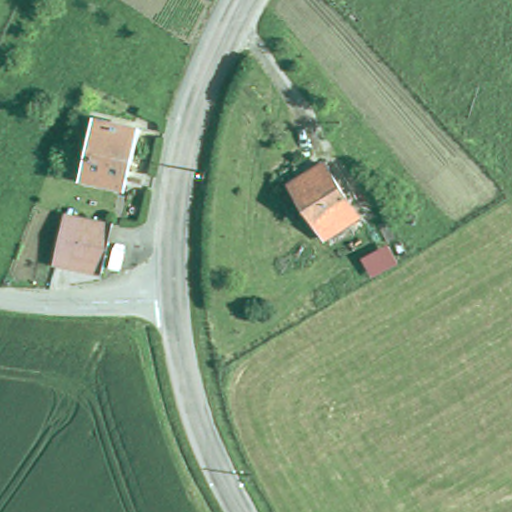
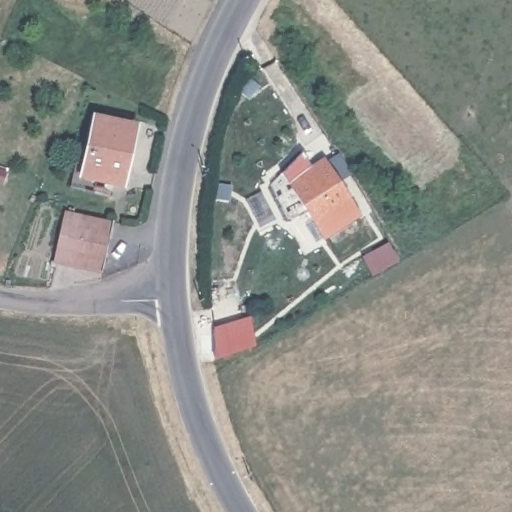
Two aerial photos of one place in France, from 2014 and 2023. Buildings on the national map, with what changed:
unchanged [(137,130),(123,186),(87,177),(100,121),(137,130)]
unchanged [(323,161),(363,223),(329,244),(289,181),(323,161)]
unchanged [(110,221),(100,270),(54,258),(66,210),(110,221)]
new [(250,317),(257,345),(214,360),(213,329),(250,317)]

